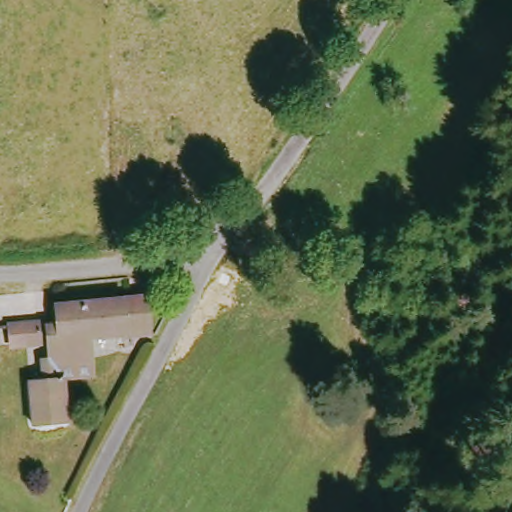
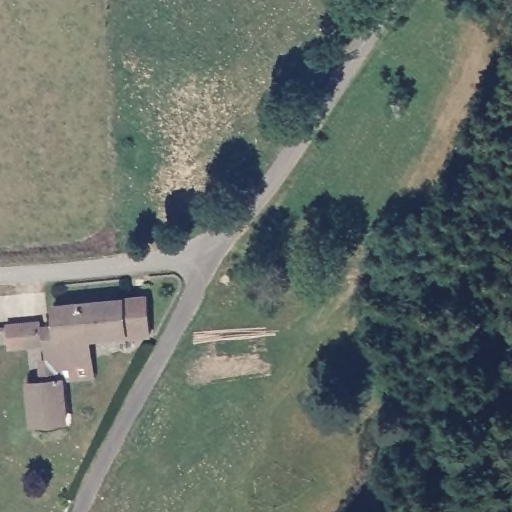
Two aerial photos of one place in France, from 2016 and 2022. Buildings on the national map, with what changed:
unchanged [(57,337),(56,325),(54,307),(119,302),(146,300),(147,336),(122,339),(122,332),(87,334),(57,337)]
unchanged [(38,339),(6,342),(5,323),(37,320),(38,339)]
unchanged [(57,337),(87,334),(89,377),(63,381),(66,422),(33,427),(27,383),(42,381),(40,358),(48,357),(46,326),(56,325),(57,337)]

